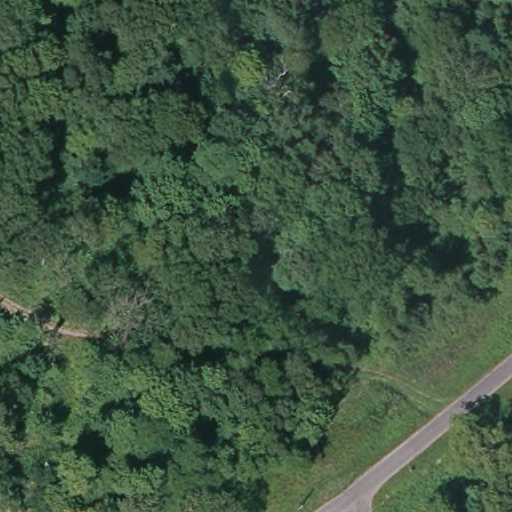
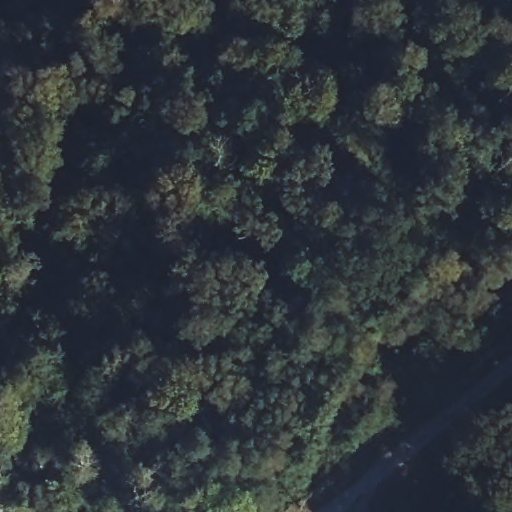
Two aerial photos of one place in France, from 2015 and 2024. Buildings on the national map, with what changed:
[]

